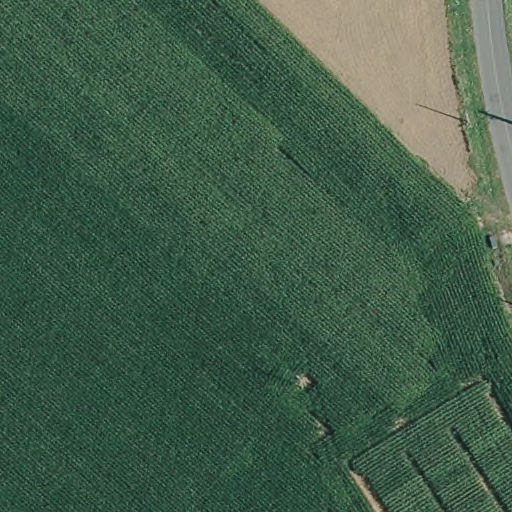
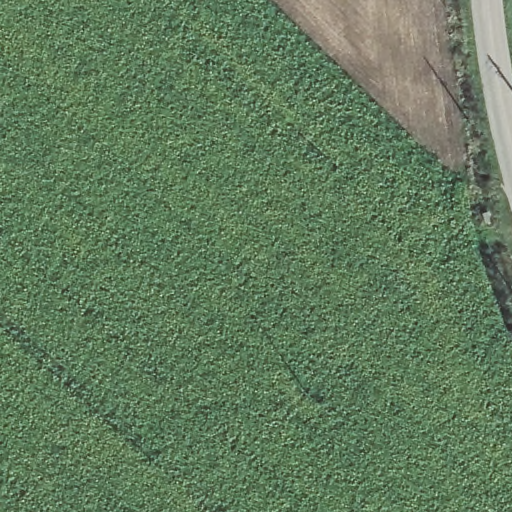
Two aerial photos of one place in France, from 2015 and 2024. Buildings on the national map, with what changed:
[]

